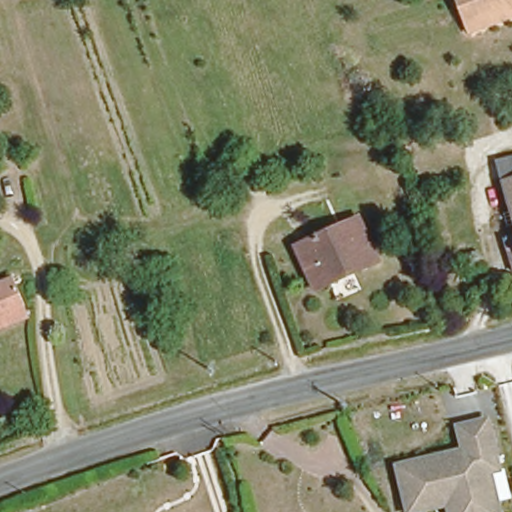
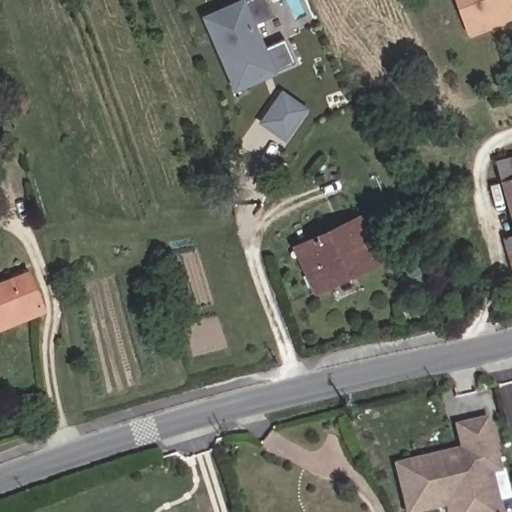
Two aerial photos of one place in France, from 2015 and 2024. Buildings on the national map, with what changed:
new [(247,0),(267,0),(275,16),(252,26),(263,49),(285,39),(296,63),(237,89),(205,19),(247,0)]
unchanged [(466,26),(459,0),(512,0),(512,11),(498,15),(466,26)]
new [(284,95),(306,111),(286,140),(263,124),(284,95)]
unchanged [(512,150),(512,173),(488,179),(482,156),(512,150)]
unchanged [(512,247),(499,193),(492,194),(488,179),(512,173),(512,247)]
unchanged [(293,240),(360,212),(378,256),(312,284),(293,240)]
unchanged [(15,276),(27,318),(0,326),(0,281),(15,276)]
unchanged [(407,512),(402,512),(391,465),(443,452),(451,456),(458,455),(452,425),(481,418),(493,469),(497,468),(505,497),(491,500),(494,512),(444,512),(442,503),(407,512)]

